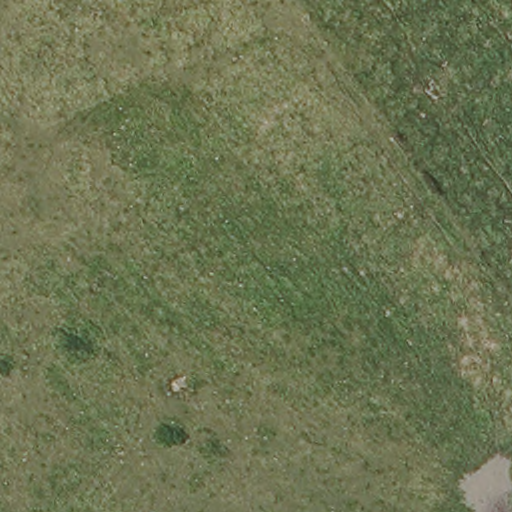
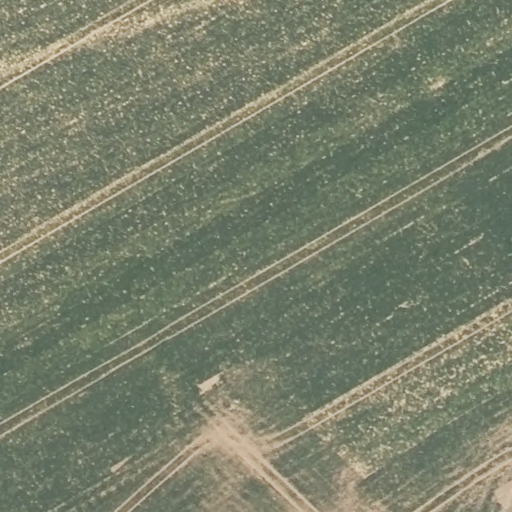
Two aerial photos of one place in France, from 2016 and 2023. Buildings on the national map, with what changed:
[]

